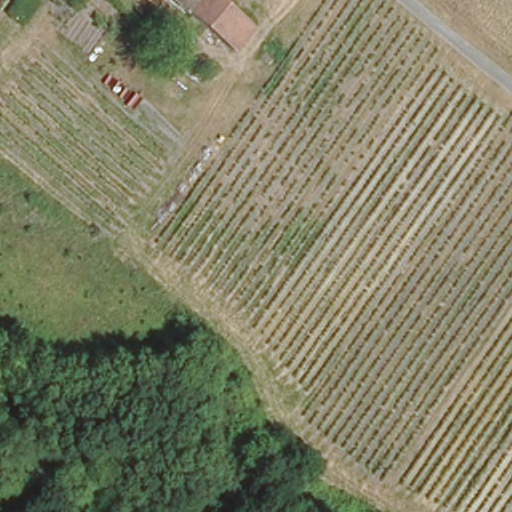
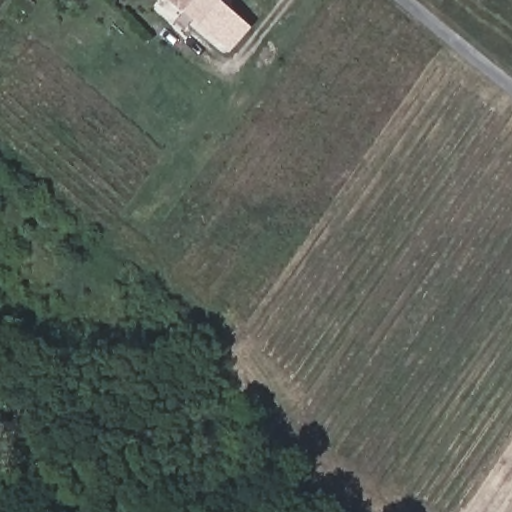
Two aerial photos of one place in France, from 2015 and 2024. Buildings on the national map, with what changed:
unchanged [(232,52),(174,0),(221,0),(254,28),(232,52)]

